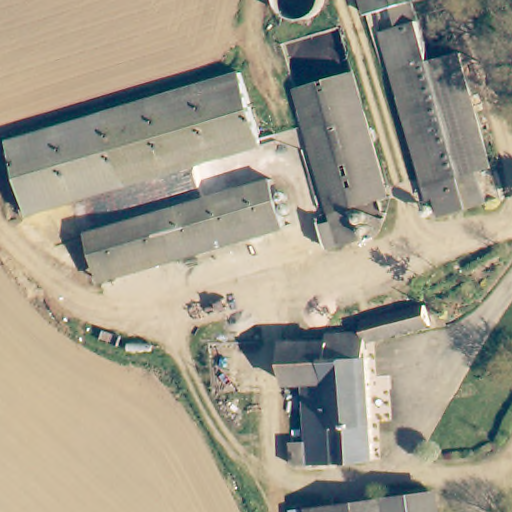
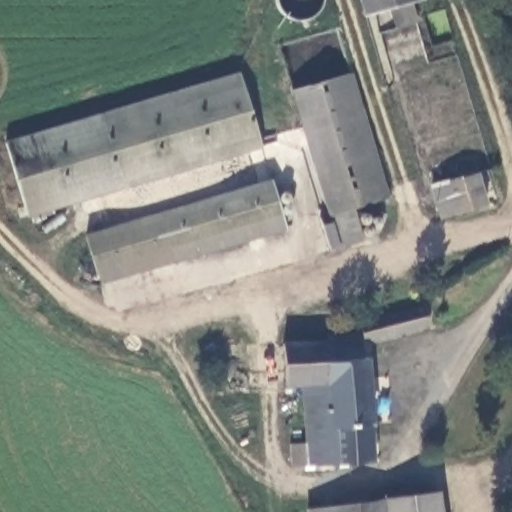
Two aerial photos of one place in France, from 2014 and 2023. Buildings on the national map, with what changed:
unchanged [(426,1),(412,4),(428,62),(460,54),(494,168),(479,172),(488,206),(442,219),(401,71),(392,74),(380,32),(398,27),(392,9),(368,16),(364,0),(426,0),(426,1)]
unchanged [(258,145),(25,219),(2,144),(237,70),(258,145)]
unchanged [(320,230),(330,227),(292,97),(351,79),(388,203),(352,214),(358,232),(368,230),(372,244),(338,254),(327,257),(320,230)]
unchanged [(287,229),(102,287),(87,240),(271,181),(287,229)]
unchanged [(373,466),(290,470),(287,448),(310,447),(306,387),(282,389),(280,352),(325,346),(323,338),(364,332),(363,322),(425,311),(428,331),(362,345),(373,466)]
unchanged [(438,496),(441,512),(383,512),(382,502),(438,496)]
unchanged [(302,512),(313,511),(382,502),(383,512),(302,512)]

